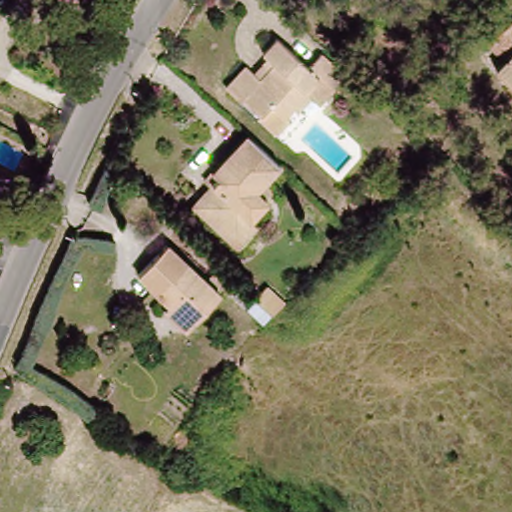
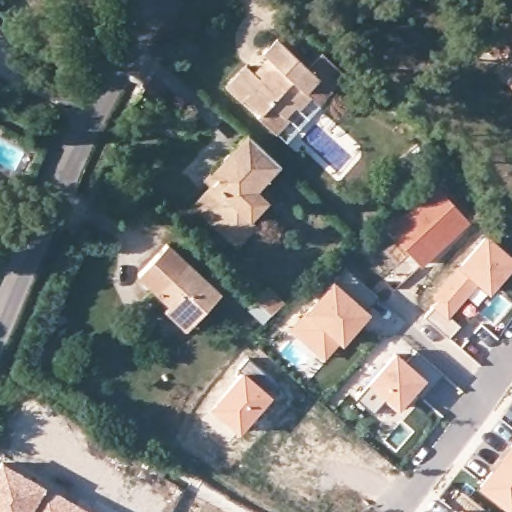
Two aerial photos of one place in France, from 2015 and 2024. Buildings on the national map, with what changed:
unchanged [(505,64),(492,50),(512,29),(512,89),(497,73),(505,64)]
unchanged [(350,71),(333,86),(319,73),(307,86),(312,92),(302,104),(297,101),(285,112),(290,117),(278,129),(227,81),(246,60),(255,69),(269,53),(264,46),(277,35),(311,63),(323,48),(350,71)]
unchanged [(243,247),(198,205),(203,200),(217,185),(209,178),(217,171),(252,132),(291,168),(278,181),(275,179),(263,188),(274,200),(258,220),(264,227),(243,247)]
new [(421,267),(408,252),(399,262),(389,251),(398,242),(384,226),(436,182),(470,222),(421,267)]
new [(512,258),(512,268),(488,294),(457,266),(486,234),(512,258)]
unchanged [(160,314),(164,308),(135,280),(165,247),(205,283),(211,277),(222,287),(217,294),(217,297),(187,330),(183,335),(160,314)]
new [(435,301),(430,296),(457,266),(488,294),(476,306),(467,298),(451,316),(461,326),(448,339),(423,316),(435,301)]
new [(332,280),(370,313),(323,362),(288,331),(332,280)]
new [(247,309),(268,287),(285,304),(265,325),(247,309)]
new [(395,351),(429,383),(421,393),(417,390),(395,412),(383,402),(373,413),(355,398),(395,351)]
new [(242,370),(272,396),(236,435),(208,410),(242,370)]
new [(476,486),(512,440),(512,512),(510,512),(476,486)]
new [(47,487),(90,512),(0,512),(0,463),(1,462),(47,487)]
new [(461,507),(468,512),(457,512),(461,507)]

